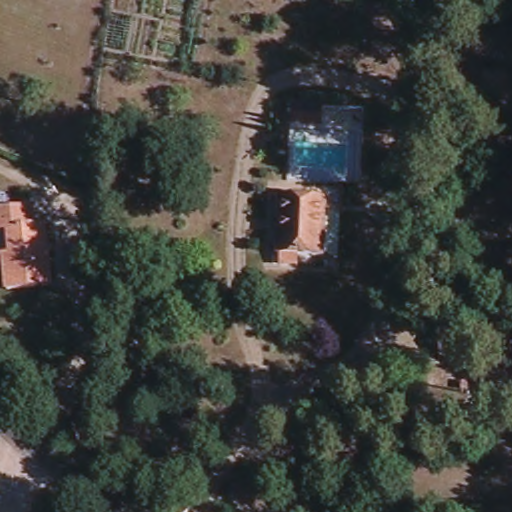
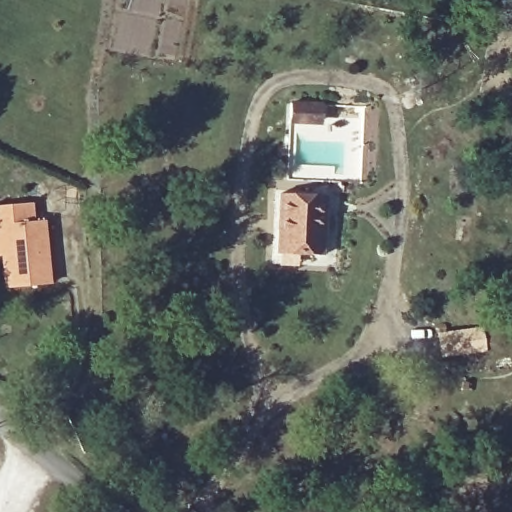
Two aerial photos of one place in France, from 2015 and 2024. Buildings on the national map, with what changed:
unchanged [(267,189),(321,192),(321,249),(294,249),(294,260),(273,258),(273,248),(267,247),(267,189)]
unchanged [(24,200),(27,222),(36,221),(44,283),(1,287),(0,278),(0,203),(24,200)]
unchanged [(486,349),(444,354),(441,335),(483,330),(486,349)]

